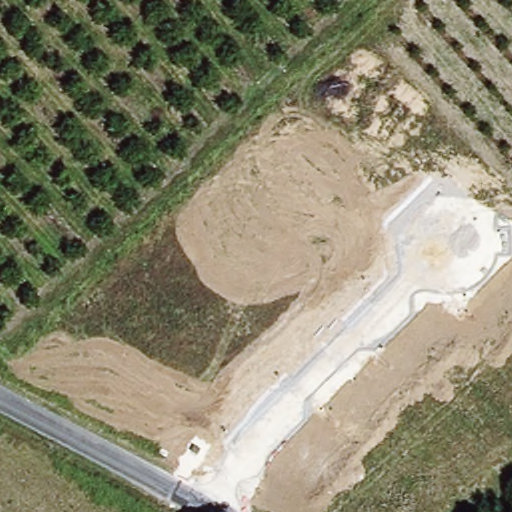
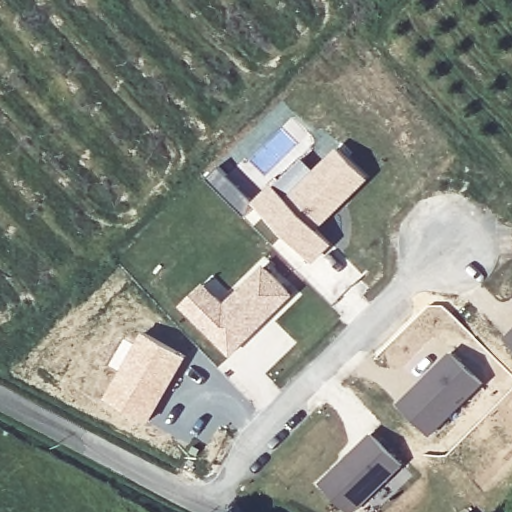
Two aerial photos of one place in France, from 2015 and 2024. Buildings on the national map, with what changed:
new [(362,176),(341,198),(328,210),(311,227),(325,242),(307,260),(251,203),(269,185),(284,199),(335,149),(362,176)]
new [(226,353),(191,317),(178,305),(200,284),(211,296),(221,305),(260,266),(287,294),(226,353)]
new [(143,330),(188,355),(150,422),(106,397),(143,330)]
new [(512,330),(512,343),(506,336),(512,330)]
new [(450,351),(483,384),(434,434),(399,402),(450,351)]
new [(370,433),(412,475),(393,494),(390,491),(391,489),(387,485),(356,512),(352,512),(321,479),(370,433)]

